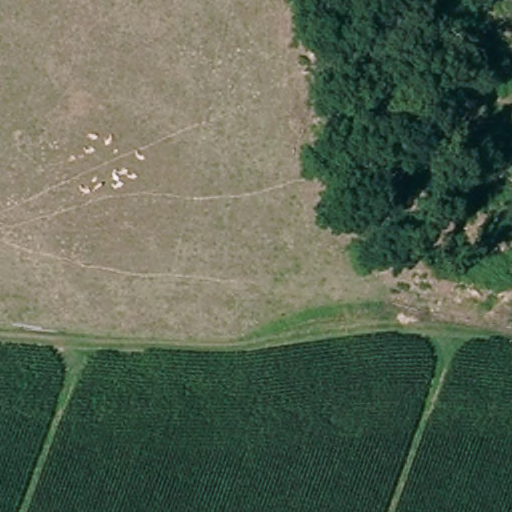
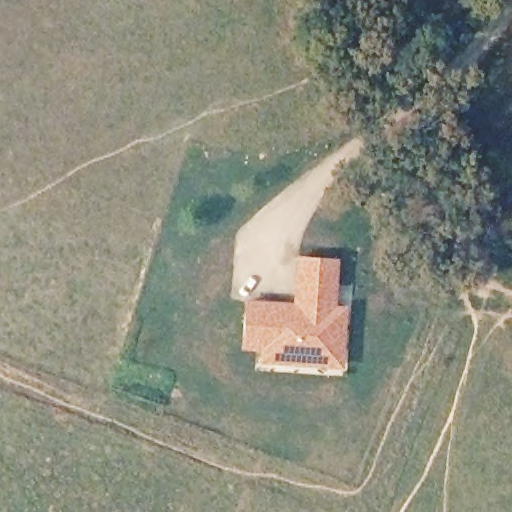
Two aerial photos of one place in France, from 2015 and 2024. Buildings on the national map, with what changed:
new [(244,297),(290,301),(292,254),(340,257),(336,302),(350,304),(345,372),(255,364),(256,351),(239,349),(244,297)]

